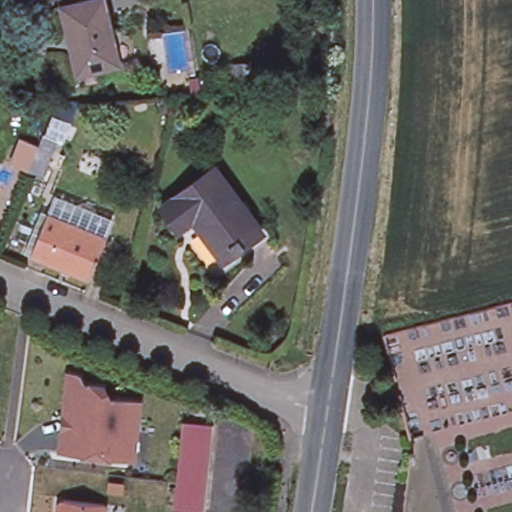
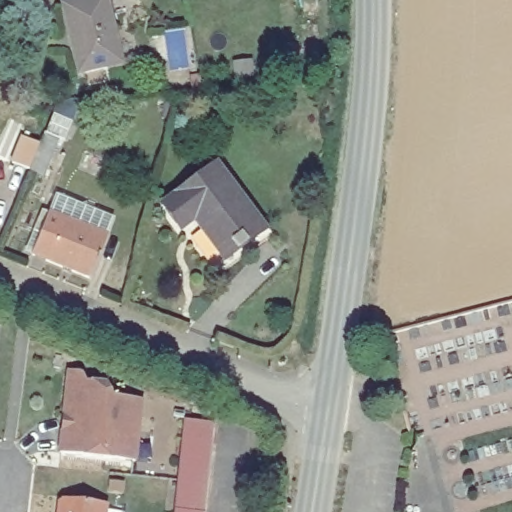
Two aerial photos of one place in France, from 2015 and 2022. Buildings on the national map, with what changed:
unchanged [(62,4),(78,0),(105,0),(120,60),(79,71),(62,4)]
unchanged [(50,160),(43,177),(27,170),(37,144),(54,151),(50,160)]
unchanged [(267,221),(249,234),(254,241),(219,267),(167,195),(220,156),(267,221)]
unchanged [(100,234),(84,275),(26,252),(42,211),(100,234)]
unchanged [(58,451),(60,428),(62,412),(66,368),(75,370),(79,371),(82,378),(103,381),(109,392),(140,396),(137,428),(135,457),(125,457),(101,455),(91,453),(58,451)]
unchanged [(215,418),(205,512),(175,512),(185,416),(215,418)]
unchanged [(106,501),(105,512),(58,512),(59,502),(64,497),(106,501)]

